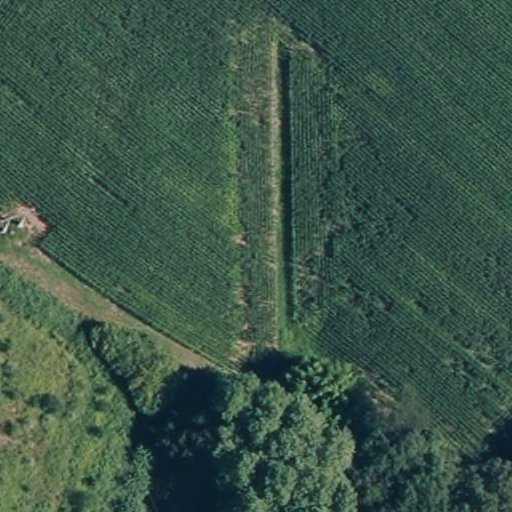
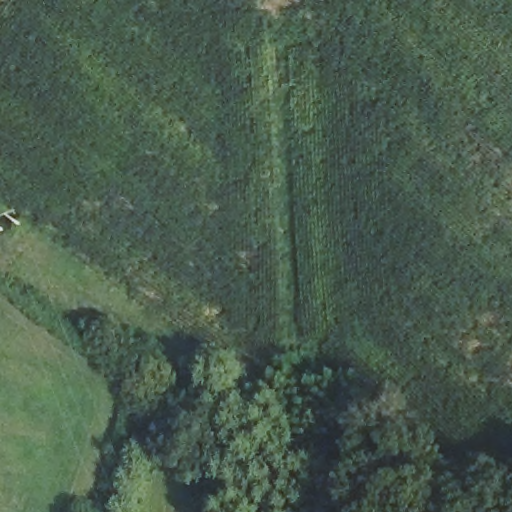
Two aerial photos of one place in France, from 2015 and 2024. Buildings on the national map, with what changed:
[]

